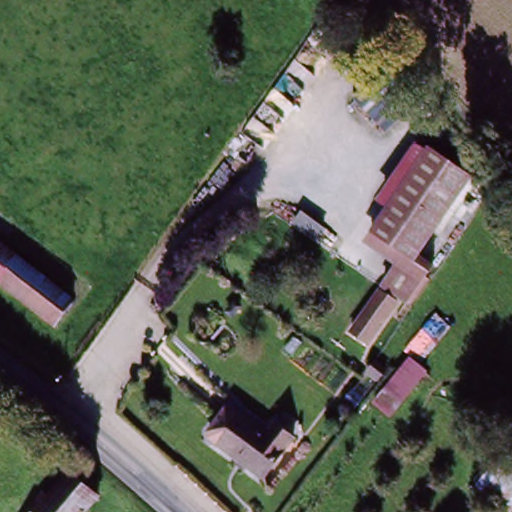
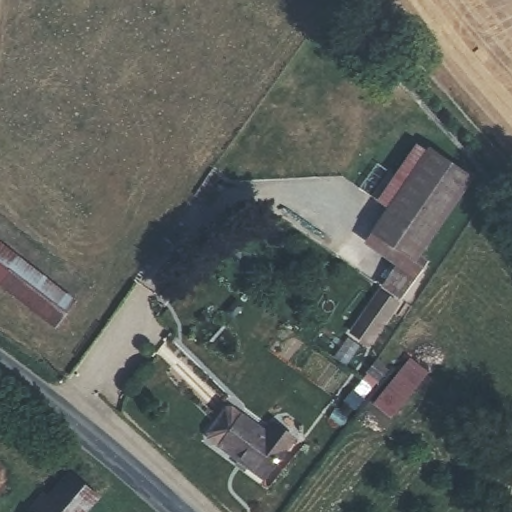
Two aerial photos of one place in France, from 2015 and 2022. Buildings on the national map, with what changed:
unchanged [(406,253),(366,219),(431,146),(470,179),(406,253)]
unchanged [(53,328),(7,292),(0,286),(0,246),(72,302),(53,328)]
unchanged [(351,334),(371,305),(381,289),(397,300),(387,317),(368,346),(351,334)]
unchanged [(405,399),(390,388),(406,367),(421,377),(405,399)]
unchanged [(473,489),(492,462),(478,453),(512,413),(512,510),(510,512),(499,512),(473,489)]
unchanged [(260,477),(215,444),(237,414),(282,446),(260,477)]
unchanged [(26,508),(42,493),(45,496),(67,471),(95,496),(81,512),(31,512),(26,508)]

